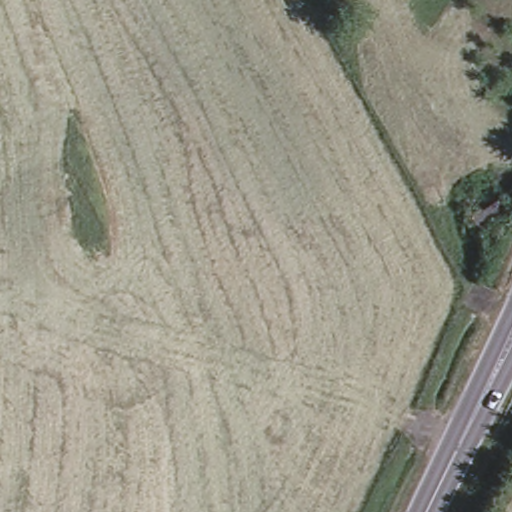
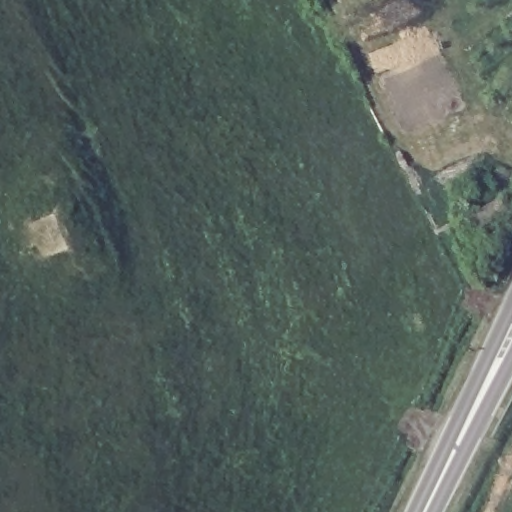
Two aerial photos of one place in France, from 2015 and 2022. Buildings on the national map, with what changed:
unchanged [(466,212),(499,187),(510,214),(482,239),(466,212)]

